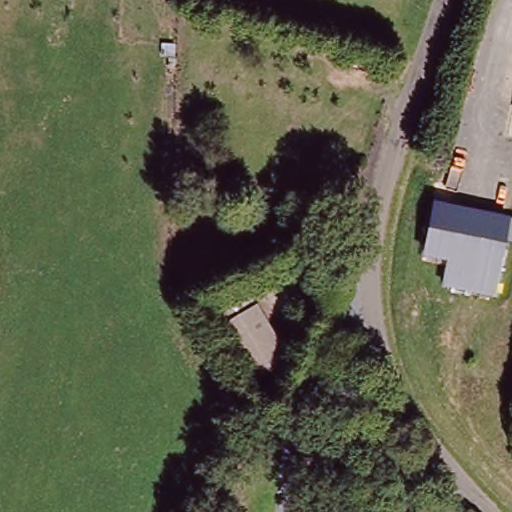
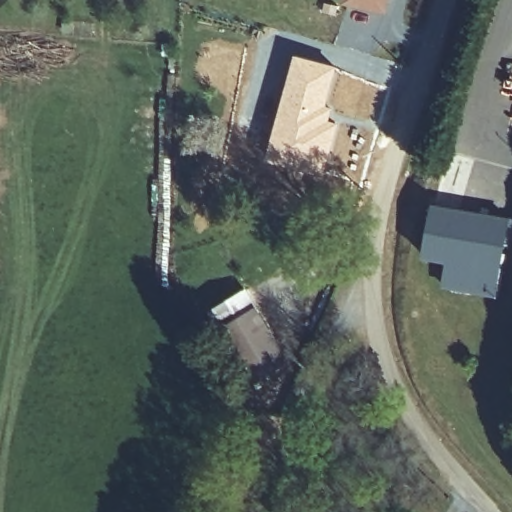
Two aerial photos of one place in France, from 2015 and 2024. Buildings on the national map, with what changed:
new [(389,0),(385,14),(340,3),(341,0),(389,0)]
new [(294,52),(337,66),(327,104),(334,106),(331,116),(341,120),(324,181),(264,161),(294,52)]
unchanged [(448,287),(452,262),(428,259),(435,208),(512,218),(501,295),(448,287)]
unchanged [(264,389),(219,322),(250,302),(295,369),(264,389)]

